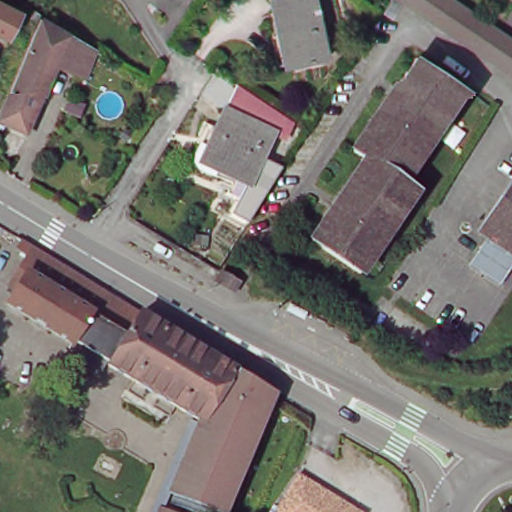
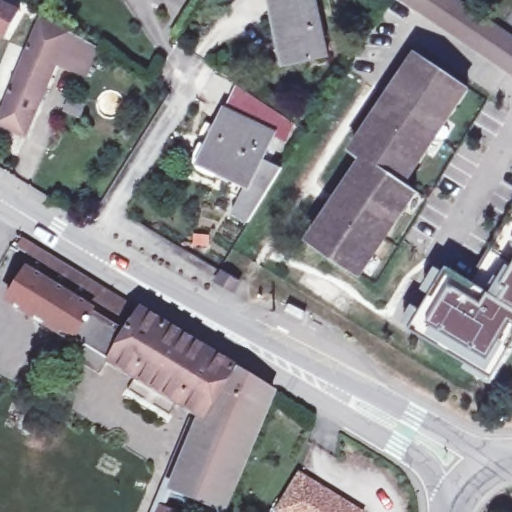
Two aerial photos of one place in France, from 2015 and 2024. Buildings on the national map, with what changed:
unchanged [(295,62),(288,29),(280,30),(274,0),(320,0),(332,55),(295,62)]
unchanged [(406,0),(461,0),(512,34),(512,70),(406,0)]
unchanged [(11,39),(0,33),(0,4),(23,16),(11,39)]
unchanged [(32,15),(37,7),(39,9),(45,12),(41,20),(32,15)]
unchanged [(60,62),(30,134),(2,120),(45,16),(104,53),(92,79),(60,62)]
unchanged [(412,186),(423,193),(370,272),(323,241),(376,160),(365,154),(428,58),(475,90),(412,186)]
new [(227,109),(238,85),(300,126),(290,145),(276,132),(227,109)]
unchanged [(255,181),(205,158),(227,109),(276,132),(255,181)]
new [(282,168),(247,222),(234,215),(247,188),(200,167),(205,158),(255,181),(264,161),(282,168)]
demolished [(483,231),(512,190),(512,251),(483,231)]
new [(495,378),(412,329),(450,268),(471,280),(512,215),(512,349),(495,378)]
unchanged [(180,463),(201,415),(184,405),(177,415),(136,389),(142,380),(117,364),(109,376),(73,355),(80,341),(15,301),(22,290),(16,286),(35,256),(32,254),(25,250),(30,241),(37,245),(40,247),(66,263),(253,377),(280,394),(280,396),(250,466),(237,495),(230,512),(229,512),(228,511),(228,512),(215,512),(217,507),(188,495),(178,490),(170,508),(168,512),(158,512),(180,463)]
unchanged [(221,271),(238,282),(232,291),(215,281),(221,271)]
unchanged [(279,508),(301,474),(359,512),(284,512),(279,508)]
unchanged [(179,512),(168,512),(170,508),(179,512)]

